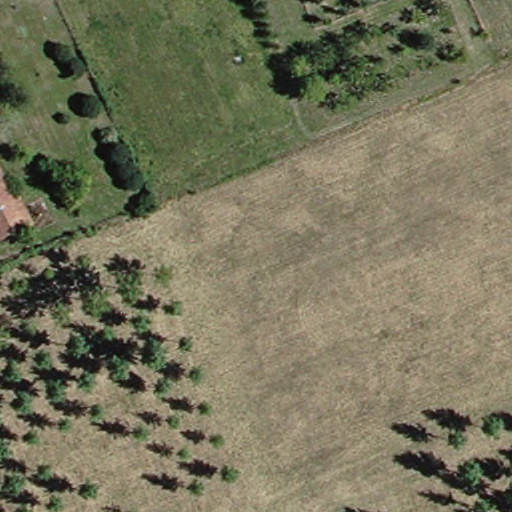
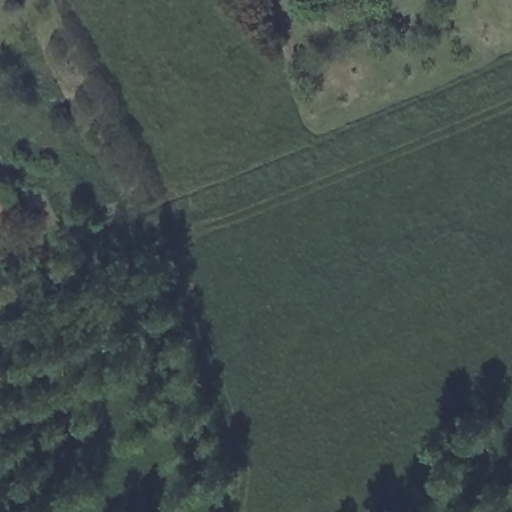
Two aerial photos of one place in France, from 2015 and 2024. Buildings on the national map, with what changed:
unchanged [(0,236),(0,169),(31,217),(0,236)]

